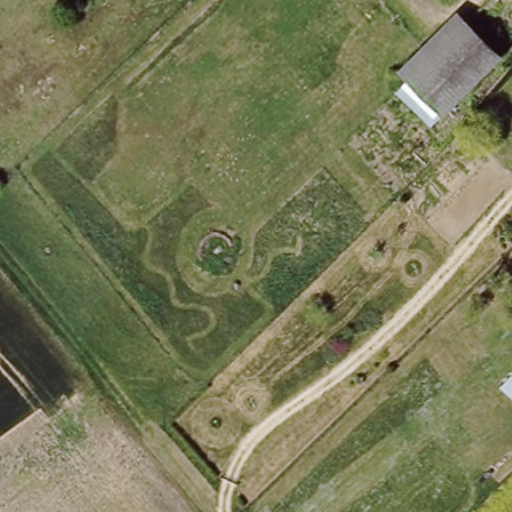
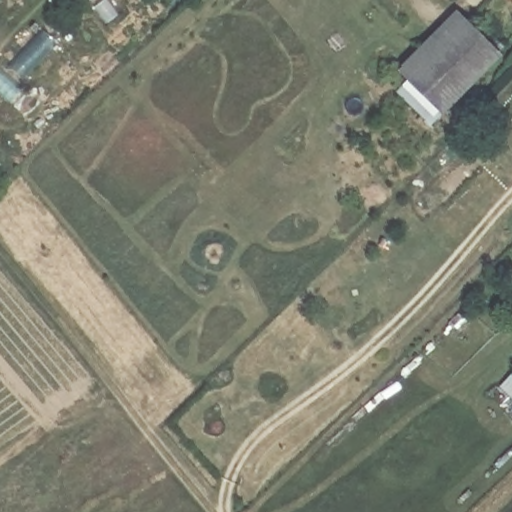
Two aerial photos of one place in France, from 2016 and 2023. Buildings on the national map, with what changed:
unchanged [(389,69),(446,14),(488,58),(432,114),(389,69)]

